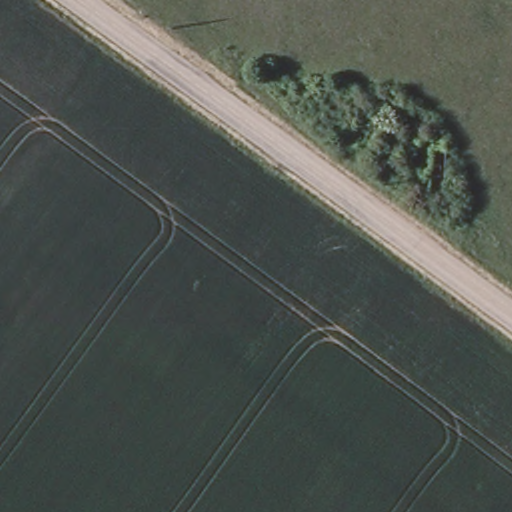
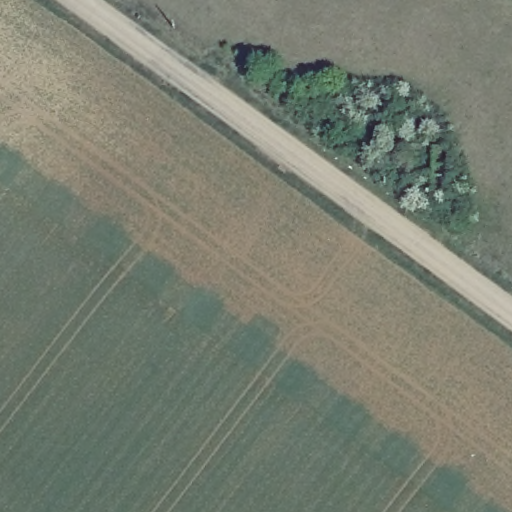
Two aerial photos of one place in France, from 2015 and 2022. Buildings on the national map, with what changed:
unchanged [(441,142),(440,193),(426,193),(425,142),(441,142)]

